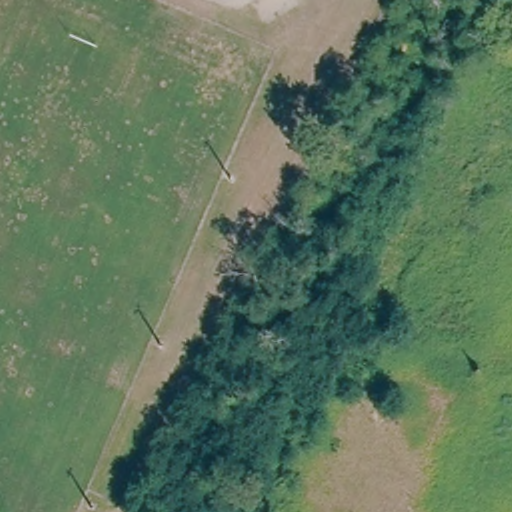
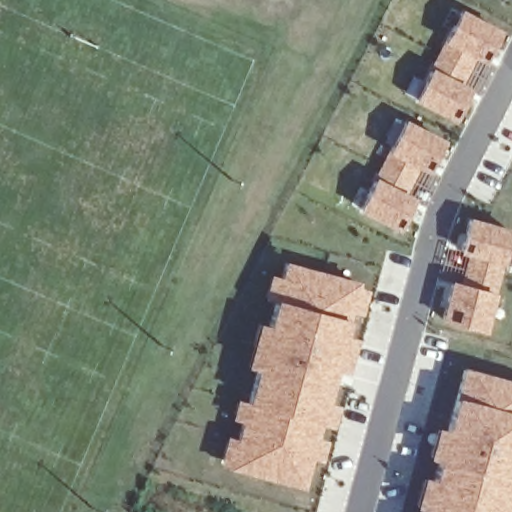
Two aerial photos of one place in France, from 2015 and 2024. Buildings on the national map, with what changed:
new [(498,32),(484,60),(474,55),(458,86),(470,90),(455,119),(416,99),(460,13),(498,32)]
new [(442,141),(427,167),(420,162),(403,195),(412,201),(398,226),(360,208),(405,125),(442,141)]
new [(510,229),(485,330),(441,317),(450,283),(464,287),(472,254),(462,251),(470,220),(510,229)]
new [(357,280),(355,286),(365,290),(360,312),(348,308),(338,347),(349,351),(345,365),(333,362),(323,402),(335,405),(331,423),(320,420),(315,438),(325,441),(320,459),(308,456),(300,485),(219,463),(226,438),(237,442),(245,421),(235,417),(239,401),(249,404),(260,366),(245,362),(257,320),(269,323),(278,297),(265,294),(271,274),(282,277),(287,262),(357,280)]
new [(501,512),(427,512),(465,368),(512,381),(512,473),(501,512)]

